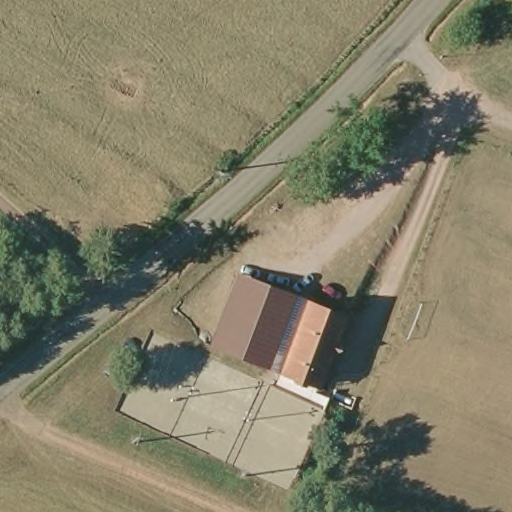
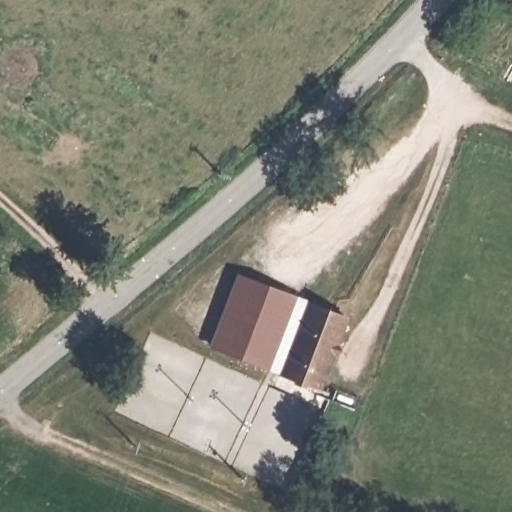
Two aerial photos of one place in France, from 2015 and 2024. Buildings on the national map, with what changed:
unchanged [(298,295),(270,365),(215,342),(242,273),(298,295)]
unchanged [(319,386),(305,381),(305,382),(295,379),(295,377),(282,371),(310,300),(347,314),(319,386)]

